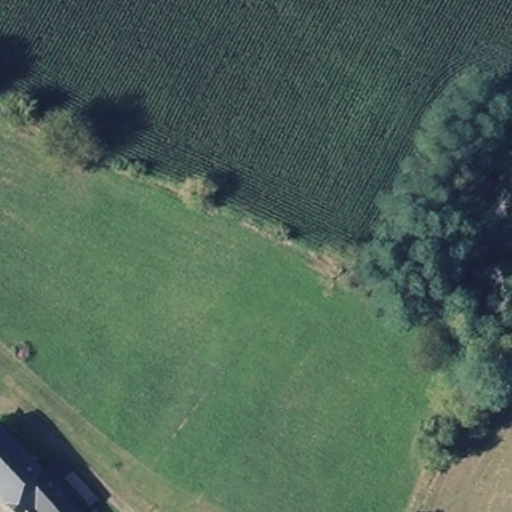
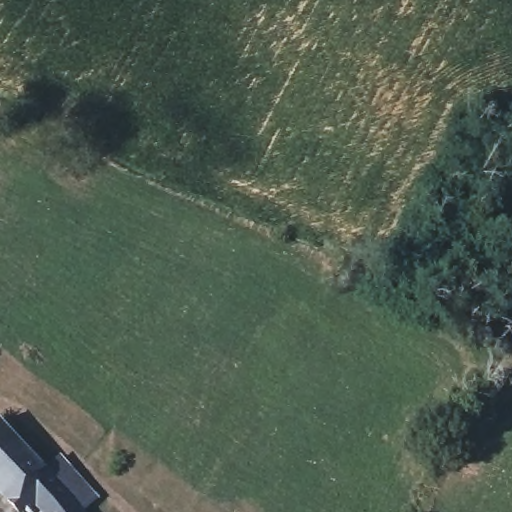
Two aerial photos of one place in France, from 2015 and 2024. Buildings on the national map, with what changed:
unchanged [(53,479),(81,512),(39,512),(37,510),(35,512),(11,512),(0,500),(0,424),(53,479)]

